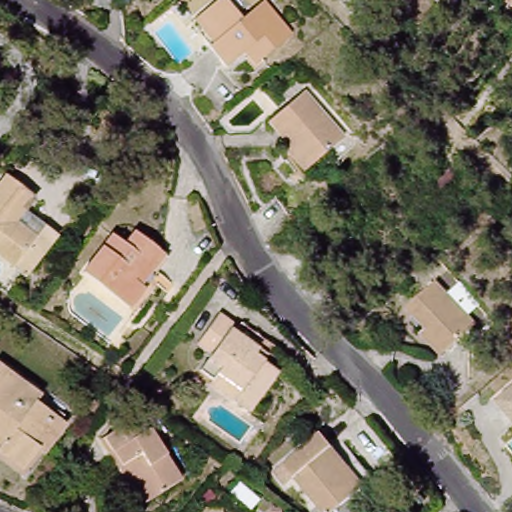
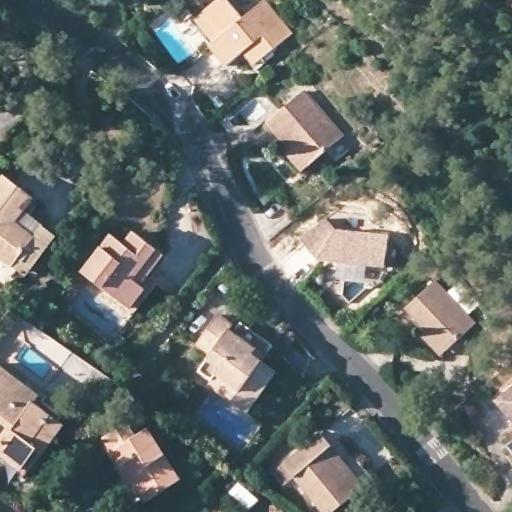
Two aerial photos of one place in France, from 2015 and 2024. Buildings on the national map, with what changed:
unchanged [(264,1),(292,35),(254,66),(243,53),(226,66),(210,47),(213,44),(194,22),(206,11),(219,0),(226,0),(242,19),(264,1)]
unchanged [(284,151),(287,148),(267,123),(304,92),(342,137),(310,165),(302,173),(284,151)]
unchanged [(31,193),(22,205),(42,220),(10,261),(0,254),(0,175),(3,171),(31,193)]
new [(336,230),(386,234),(384,267),(319,260),(303,239),(327,220),(336,230)]
unchanged [(127,240),(137,227),(169,251),(146,281),(150,284),(134,305),(85,268),(115,230),(127,240)]
unchanged [(418,336),(425,330),(405,308),(435,281),(475,324),(445,350),(438,357),(418,336)]
unchanged [(235,326),(239,328),(245,319),(277,342),(271,350),(265,357),(280,368),(253,408),(213,382),(216,376),(204,368),(215,350),(200,340),(223,310),(239,321),(235,326)]
unchanged [(44,391),(40,397),(70,421),(47,451),(40,446),(24,467),(0,448),(0,447),(2,443),(0,441),(0,359),(1,358),(44,391)]
unchanged [(506,428),(487,402),(512,383),(512,433),(511,434),(506,428)]
unchanged [(175,470),(138,493),(97,428),(122,413),(131,426),(143,419),(175,470)]
unchanged [(365,480),(327,512),(282,460),(319,428),(365,480)]

